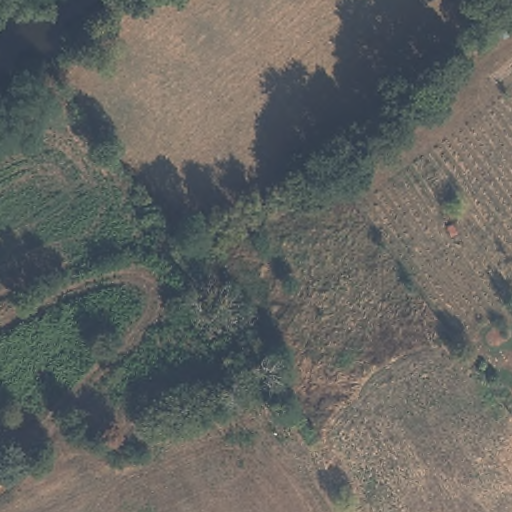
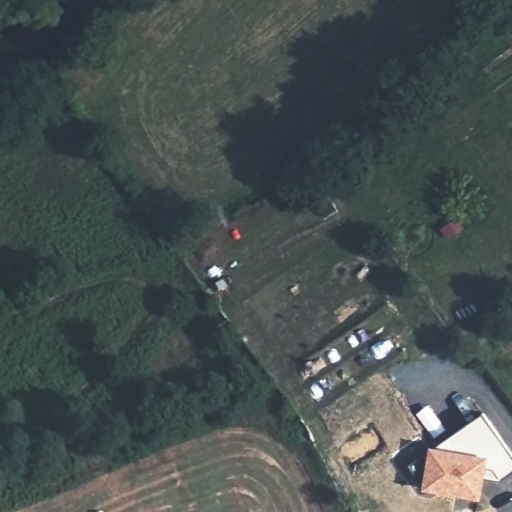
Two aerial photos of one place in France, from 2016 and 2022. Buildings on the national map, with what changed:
new [(512,458),(512,474),(501,482),(483,480),(479,500),(423,491),(424,482),(410,465),(429,452),(436,447),(482,417),(512,458)]

